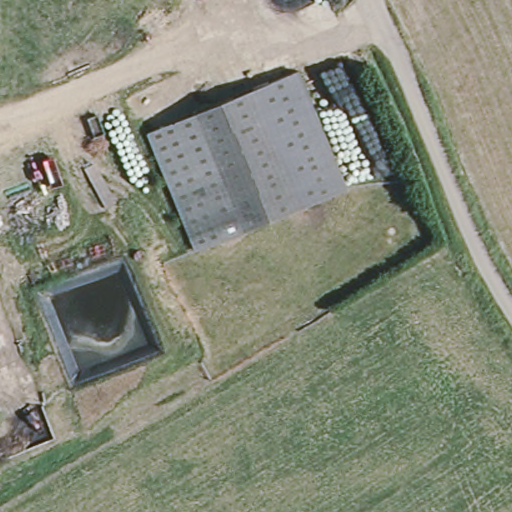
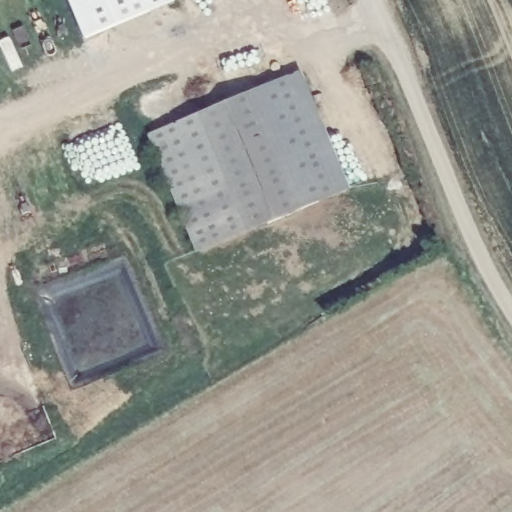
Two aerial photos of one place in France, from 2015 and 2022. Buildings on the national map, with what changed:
new [(176,3),(85,40),(69,0),(174,0),(176,3)]
unchanged [(299,66),(350,180),(298,202),(250,85),(299,66)]
unchanged [(250,85),(298,202),(243,226),(198,245),(148,130),(194,110),(250,85)]

